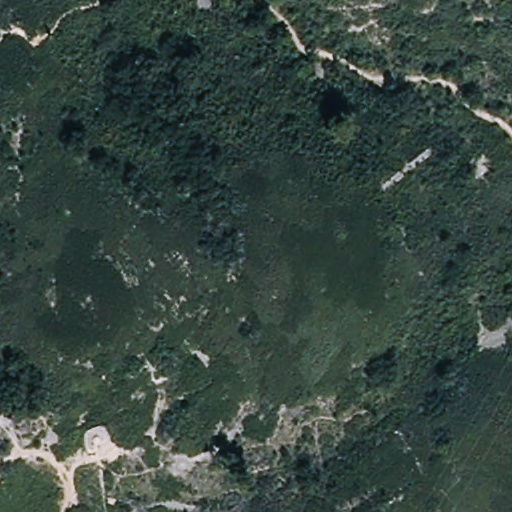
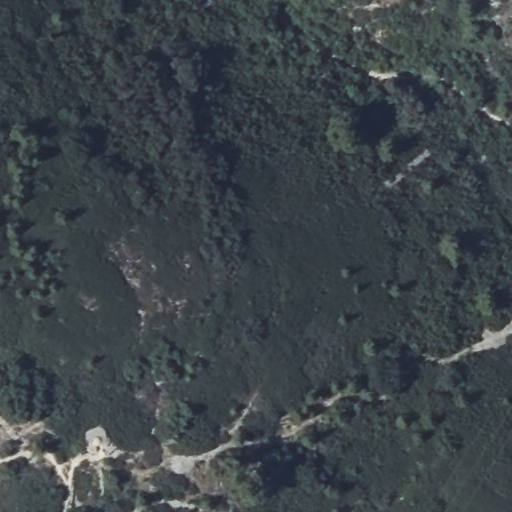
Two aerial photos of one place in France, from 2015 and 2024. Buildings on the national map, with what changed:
unchanged [(103,426),(107,428),(112,436),(113,444),(108,450),(100,455),(91,455),(85,452),(83,445),(83,437),(85,433),(88,430),(99,425),(103,426)]

